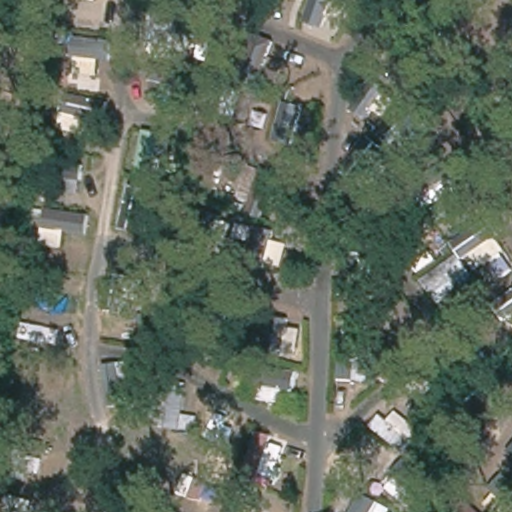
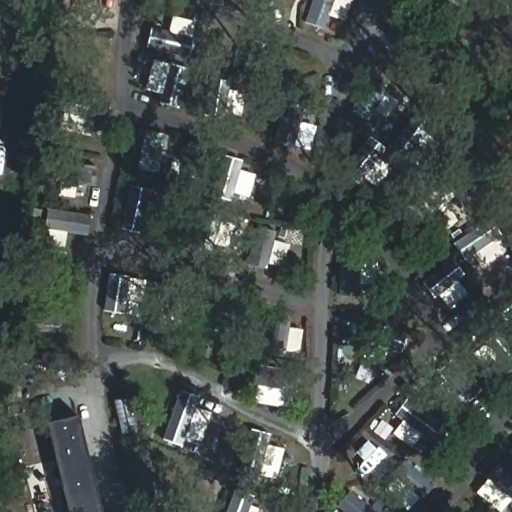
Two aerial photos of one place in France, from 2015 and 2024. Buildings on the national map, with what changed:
new [(70,512),(48,423),(77,415),(101,512),(70,512)]

